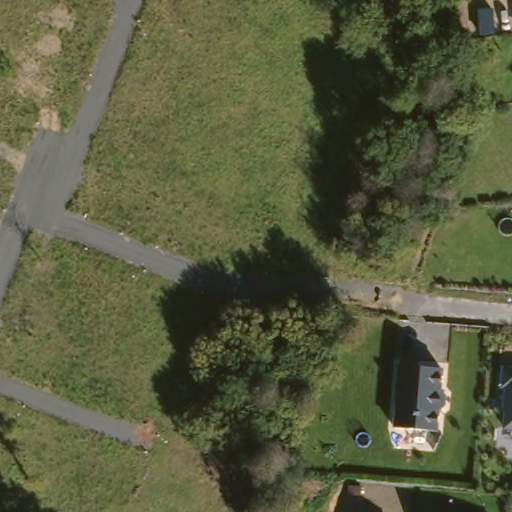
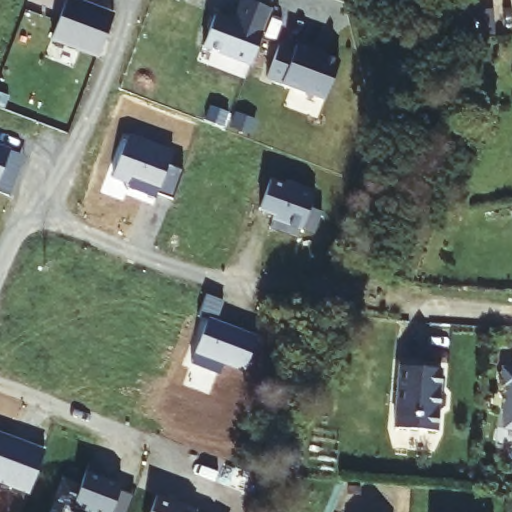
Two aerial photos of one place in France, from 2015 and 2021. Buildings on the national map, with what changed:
new [(63,0),(89,0),(114,9),(97,51),(51,33),(63,0)]
new [(216,15),(234,22),(243,0),(271,10),(251,63),(204,46),(216,15)]
new [(127,138),(172,155),(168,167),(183,173),(173,201),(158,195),(156,200),(128,190),(129,185),(112,178),(127,138)]
new [(0,147),(10,151),(1,169),(15,180),(9,194),(0,191),(0,147)]
new [(272,180),(287,185),(289,181),(314,191),(308,207),(321,212),(313,233),(300,228),(297,237),(270,227),(275,215),(261,209),(272,180)]
new [(209,318),(199,315),(207,294),(224,300),(217,321),(258,337),(246,368),(224,360),(219,371),(193,361),(209,318)]
unchanged [(444,396),(443,408),(438,413),(437,433),(394,430),(399,361),(418,363),(417,369),(441,370),(439,390),(444,396)]
unchanged [(512,370),(512,430),(499,429),(503,388),(497,388),(498,369),(512,370)]
new [(96,512),(91,510),(90,512),(78,512),(71,509),(73,503),(56,496),(64,476),(81,483),(89,462),(107,469),(104,476),(121,483),(120,487),(135,492),(127,512),(96,512)]
new [(195,508),(194,511),(197,512),(148,512),(156,492),(195,508)]

